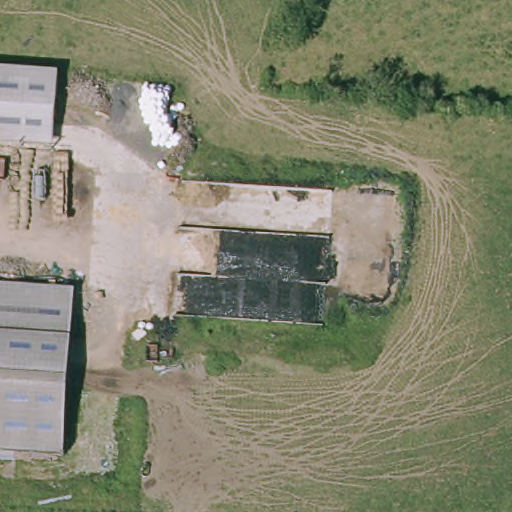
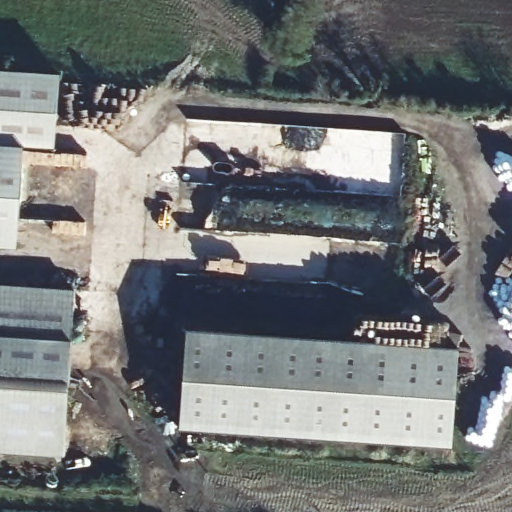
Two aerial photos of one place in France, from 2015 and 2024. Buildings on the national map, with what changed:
unchanged [(58,74),(54,147),(0,145),(0,70),(58,74)]
new [(0,245),(0,145),(24,145),(16,246),(0,245)]
unchanged [(74,289),(59,456),(0,451),(0,282),(74,289)]
new [(454,359),(451,451),(175,438),(182,343),(454,359)]

